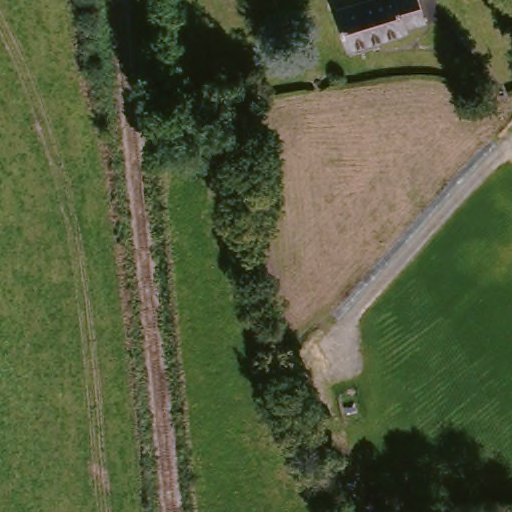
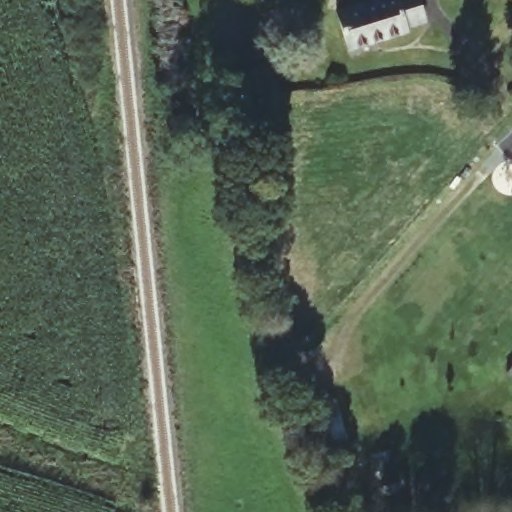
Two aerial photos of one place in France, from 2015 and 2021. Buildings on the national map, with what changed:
unchanged [(419,0),(426,21),(407,28),(408,31),(348,50),(336,11),(373,0),(419,0)]

